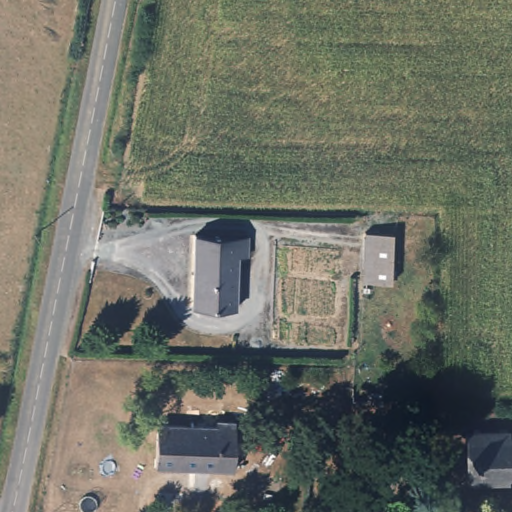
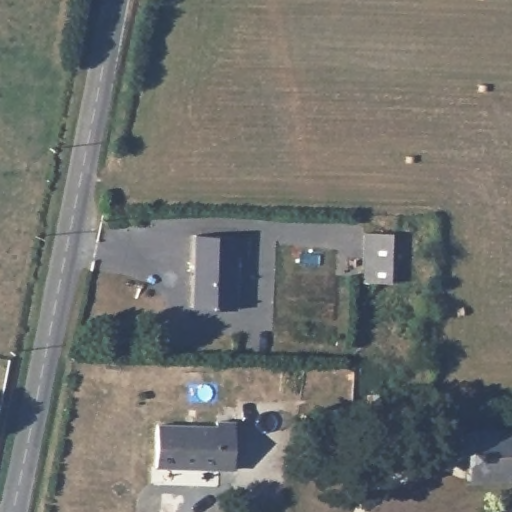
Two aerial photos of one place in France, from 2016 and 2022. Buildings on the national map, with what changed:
unchanged [(396,229),(396,282),(363,282),(363,229),(396,229)]
unchanged [(236,237),(247,238),(247,261),(236,261),(234,313),(190,312),(193,236),(236,237)]
unchanged [(215,424),(215,418),(235,418),(234,467),(156,466),(156,424),(215,424)]
unchanged [(512,434),(512,475),(503,475),(500,479),(464,481),(461,433),(497,431),(500,435),(512,434)]

